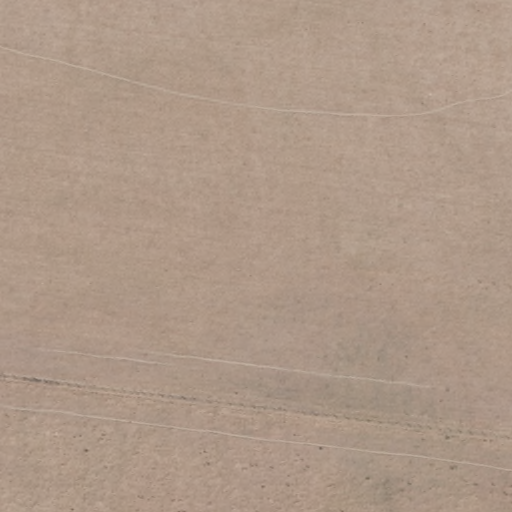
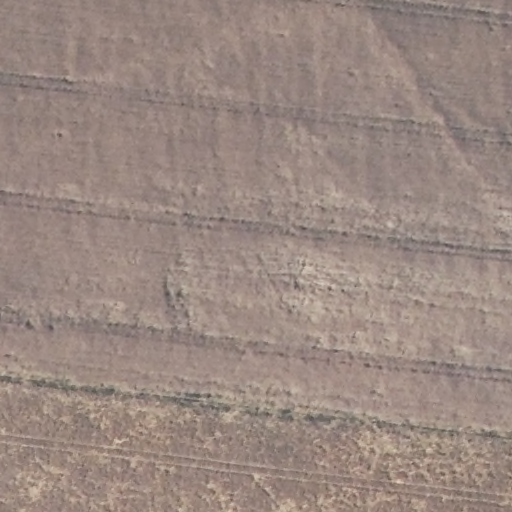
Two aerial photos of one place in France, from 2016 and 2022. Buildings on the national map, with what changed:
[]

